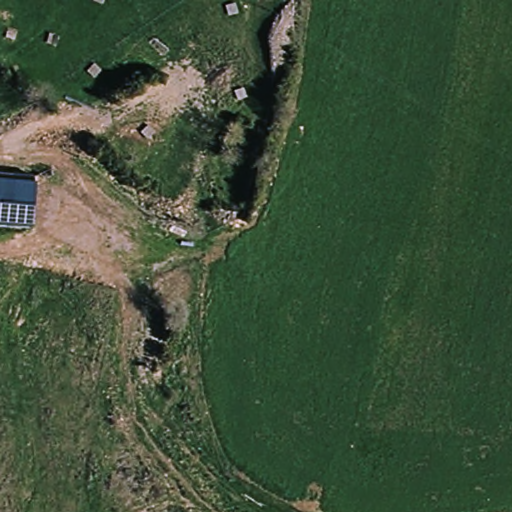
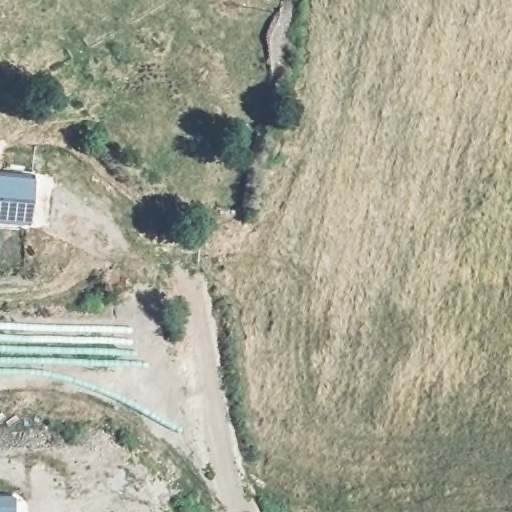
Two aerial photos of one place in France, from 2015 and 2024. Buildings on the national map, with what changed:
unchanged [(0,225),(0,176),(33,177),(30,226),(0,225)]
new [(13,512),(0,512),(0,494),(13,494),(13,512)]

